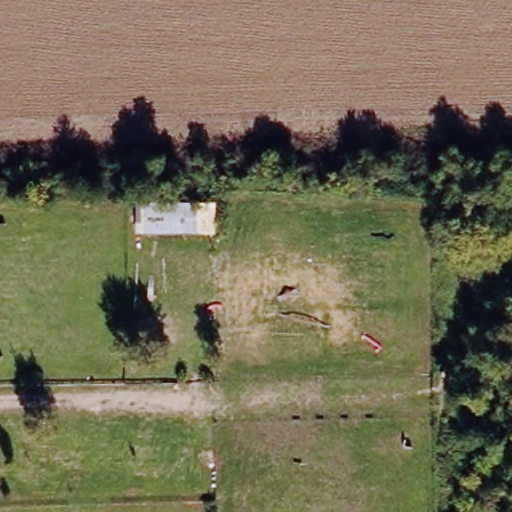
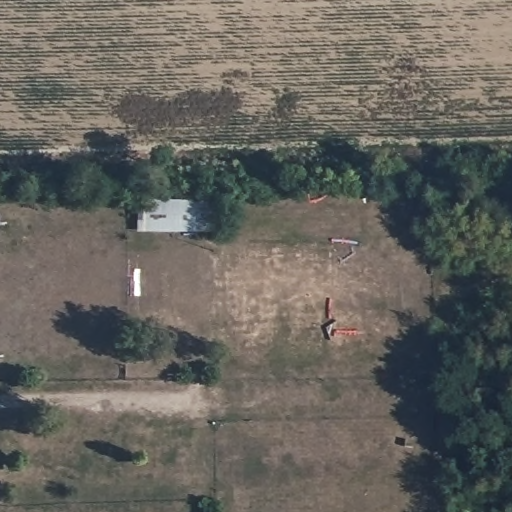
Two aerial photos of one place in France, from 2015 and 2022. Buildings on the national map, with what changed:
unchanged [(204,229),(128,229),(128,203),(204,201),(204,229)]

